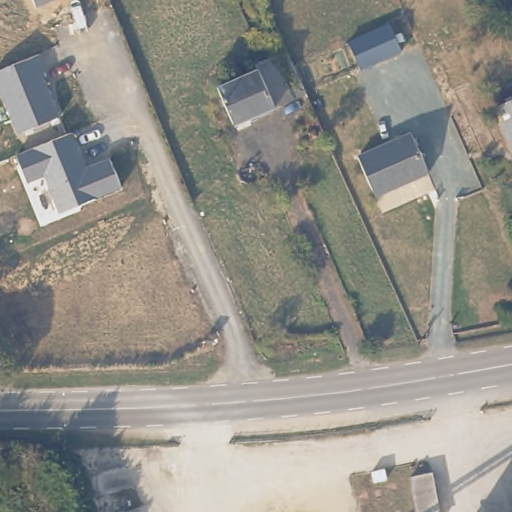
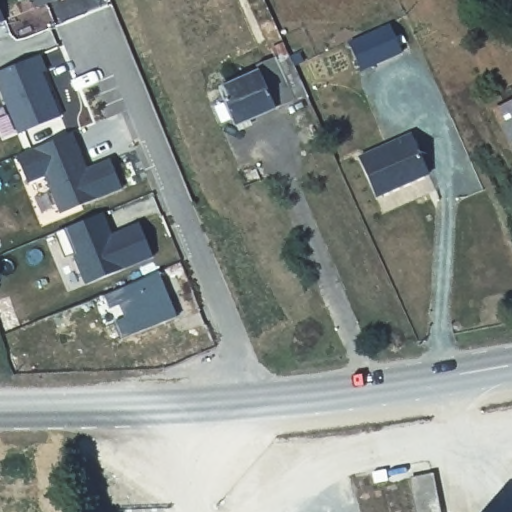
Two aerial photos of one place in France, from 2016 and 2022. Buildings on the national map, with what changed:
unchanged [(37,7),(35,0),(55,0),(37,7)]
unchanged [(0,23),(0,7),(6,20),(0,23)]
unchanged [(405,48),(364,67),(353,42),(393,25),(405,48)]
unchanged [(250,71),(257,67),(254,59),(268,53),(264,44),(277,38),(302,91),(266,108),(250,71)]
unchanged [(60,117),(18,133),(0,87),(0,72),(40,55),(60,117)]
unchanged [(232,124),(215,87),(250,71),(266,108),(232,124)]
unchanged [(493,110),(512,102),(512,152),(493,110)]
unchanged [(427,171),(375,195),(356,154),(408,131),(427,171)]
unchanged [(71,134),(86,168),(110,159),(122,189),(62,214),(46,177),(30,183),(19,156),(71,134)]
new [(104,212),(111,228),(108,229),(110,234),(141,222),(155,255),(88,283),(75,253),(66,256),(56,232),(104,212)]
new [(160,270),(180,315),(125,338),(116,319),(130,313),(125,300),(111,306),(105,293),(160,270)]
unchanged [(423,512),(417,479),(440,476),(446,512),(423,512)]
unchanged [(493,512),(512,510),(512,512),(493,512)]

